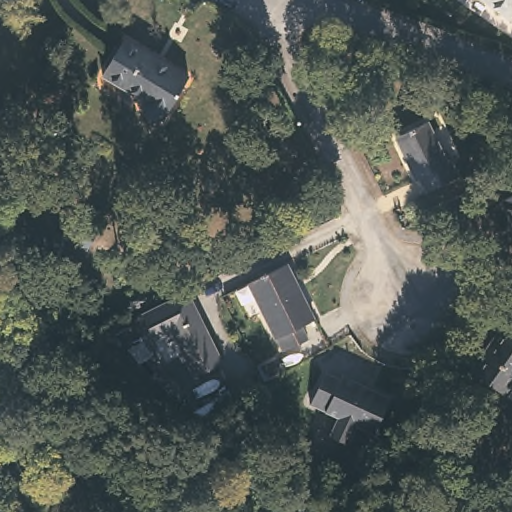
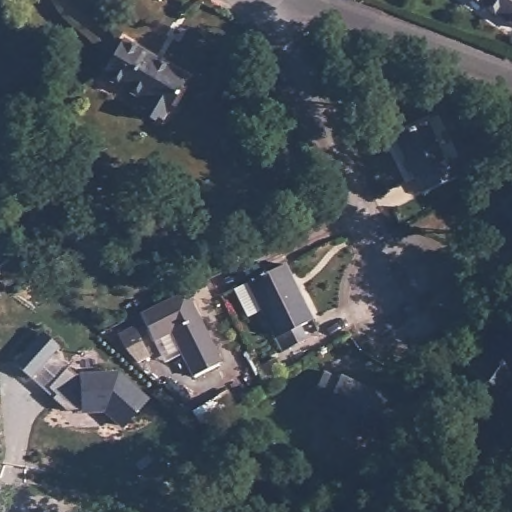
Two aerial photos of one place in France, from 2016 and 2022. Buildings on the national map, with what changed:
unchanged [(484,0),(512,0),(512,20),(484,0)]
unchanged [(188,72),(164,114),(159,110),(157,115),(145,107),(146,104),(141,100),(144,95),(102,70),(124,34),(188,72)]
unchanged [(447,164),(451,161),(457,175),(425,190),(418,177),(415,179),(394,136),(427,121),(447,164)]
unchanged [(497,195),(512,187),(512,227),(497,195)]
unchanged [(317,318),(306,325),(312,339),(287,350),(254,282),(291,264),(317,318)]
unchanged [(194,376),(173,331),(156,340),(143,312),(189,292),(222,361),(194,376)]
unchanged [(512,326),(512,375),(495,400),(461,376),(492,332),(498,336),(509,324),(512,326)]
new [(118,374),(148,401),(125,427),(105,410),(66,412),(52,400),(30,380),(13,365),(41,334),(59,348),(52,355),(67,368),(76,376),(118,374)]
unchanged [(392,400),(372,437),(306,405),(326,368),(392,400)]
unchanged [(337,453),(317,473),(302,457),(310,451),(308,449),(322,436),(337,453)]

